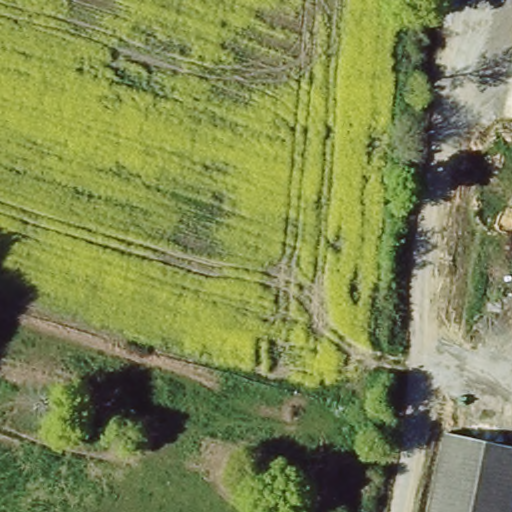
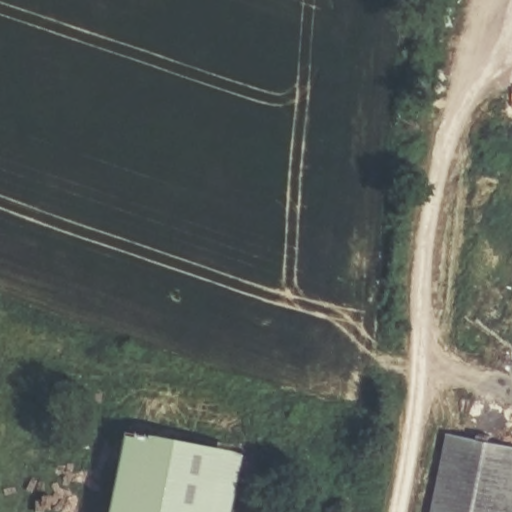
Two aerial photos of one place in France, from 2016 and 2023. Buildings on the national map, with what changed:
new [(109,512),(125,429),(243,452),(231,512),(109,512)]
unchanged [(512,445),(512,512),(431,512),(447,432),(512,445)]

